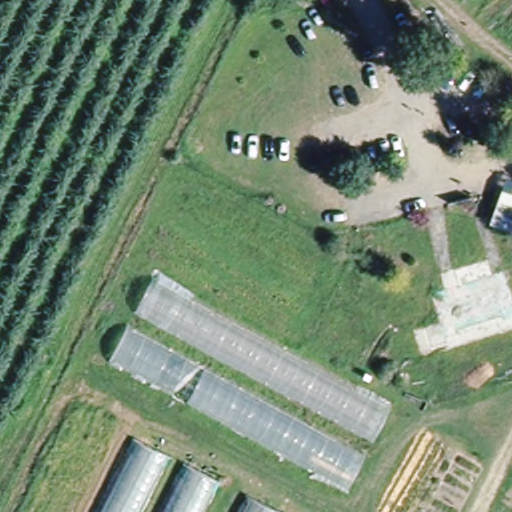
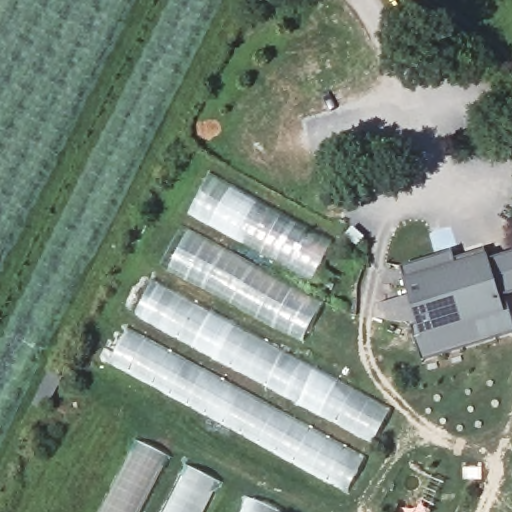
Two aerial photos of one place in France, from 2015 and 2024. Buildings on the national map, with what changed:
new [(211,175),(331,242),(308,295),(324,305),(302,344),(160,267),(211,175)]
new [(411,327),(417,325),(400,269),(451,254),(456,266),(486,257),(487,261),(512,253),(512,292),(502,295),(512,328),(512,334),(422,361),(411,327)]
demolished [(424,329),(434,326),(425,295),(442,290),(438,276),(490,262),(494,277),(508,273),(512,285),(512,336),(434,359),(424,329)]
unchanged [(153,282),(391,411),(349,490),(113,362),(153,282)]
new [(137,441),(220,482),(205,512),(101,512),(137,441)]
unchanged [(249,499),(276,512),(242,512),(249,499)]

